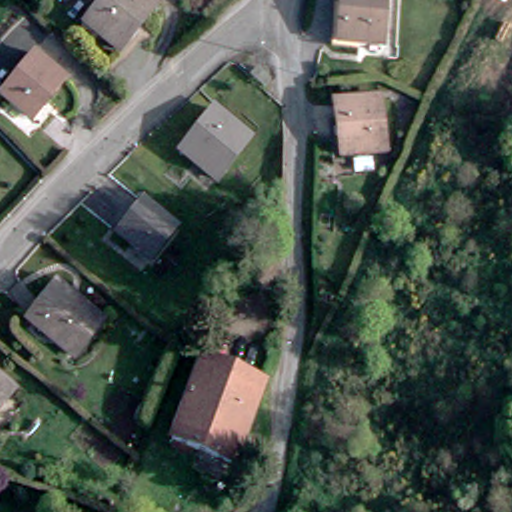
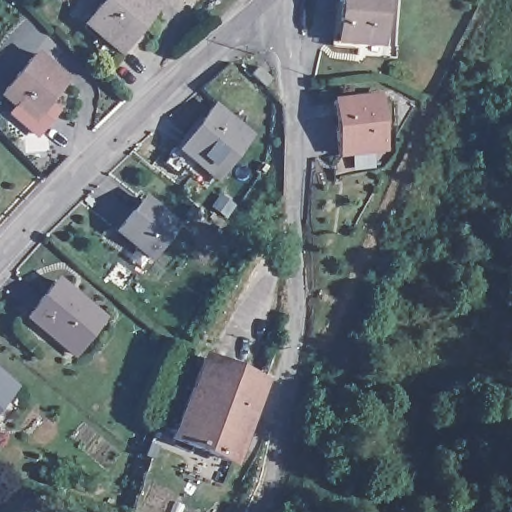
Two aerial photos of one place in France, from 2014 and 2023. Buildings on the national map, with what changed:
unchanged [(117,50),(82,20),(100,0),(152,0),(157,4),(117,50)]
unchanged [(342,41),(338,0),(386,0),(389,37),(342,41)]
unchanged [(67,75),(35,121),(7,102),(39,55),(67,75)]
unchanged [(380,147),(338,154),(330,96),(373,92),(380,147)]
unchanged [(245,135),(208,176),(175,148),(211,106),(245,135)]
unchanged [(175,228),(148,258),(114,230),(140,201),(175,228)]
unchanged [(103,325),(72,362),(27,322),(57,286),(103,325)]
unchanged [(260,377),(230,460),(176,441),(205,357),(260,377)]
unchanged [(14,387),(0,403),(0,375),(14,387)]

